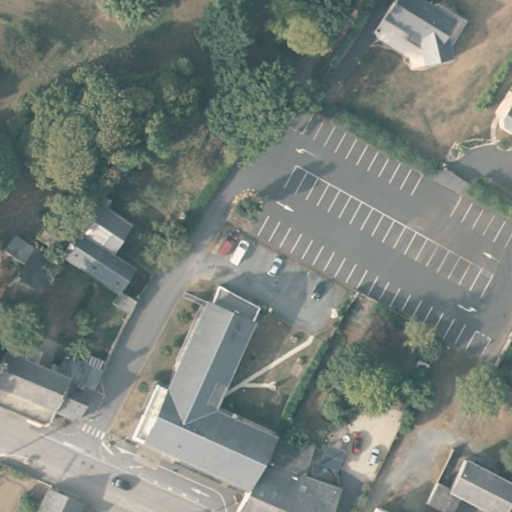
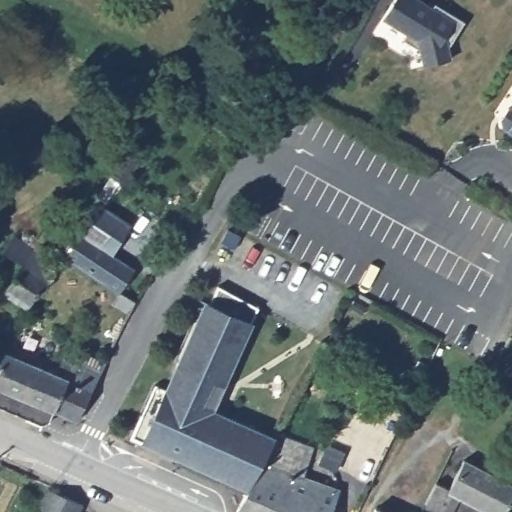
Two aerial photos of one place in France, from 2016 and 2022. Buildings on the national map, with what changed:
unchanged [(430,1),(461,17),(446,45),(450,56),(424,64),(419,49),(401,39),(405,33),(379,19),(390,0),(417,0),(428,5),(430,1)]
unchanged [(496,121),(503,109),(509,106),(512,108),(512,134),(498,127),(496,121)]
unchanged [(110,254),(75,232),(93,204),(128,226),(110,254)]
unchanged [(109,300),(117,289),(60,253),(33,237),(41,222),(69,238),(73,231),(75,232),(110,254),(131,267),(118,287),(135,299),(127,313),(109,300)]
unchanged [(11,236),(48,259),(51,255),(57,259),(28,308),(4,292),(23,261),(2,248),(11,236)]
unchanged [(220,407),(273,434),(270,440),(268,444),(254,473),(246,488),(192,461),(132,432),(158,380),(177,389),(186,371),(178,367),(209,305),(216,308),(227,285),(267,305),(230,379),(217,406),(220,407)]
unchanged [(5,346),(11,335),(57,355),(60,349),(65,352),(71,340),(107,357),(82,406),(60,396),(53,411),(0,388),(0,344),(5,346)]
unchanged [(416,428),(402,422),(414,397),(427,404),(416,428)]
unchanged [(254,473),(268,444),(306,459),(301,475),(333,489),(326,512),(235,512),(246,488),(254,473)]
unchanged [(449,506),(429,496),(438,476),(452,483),(466,456),(512,480),(512,494),(505,508),(503,512),(500,512),(457,490),(449,506)]
unchanged [(84,503),(80,512),(39,512),(51,488),(84,503)]
unchanged [(512,494),(512,512),(505,508),(512,494)]
unchanged [(393,512),(371,512),(374,503),(393,512)]

